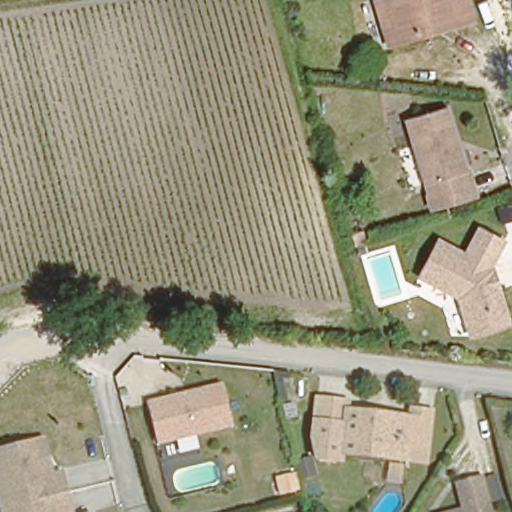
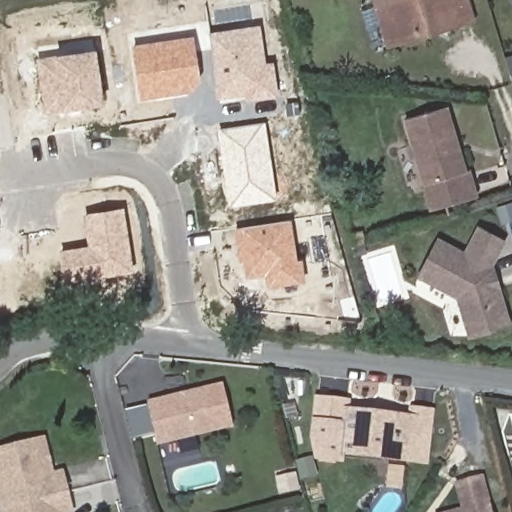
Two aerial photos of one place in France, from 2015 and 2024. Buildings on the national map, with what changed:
unchanged [(389,40),(378,0),(467,0),(472,15),(437,25),(423,30),(402,36),(389,40)]
new [(261,25),(266,62),(275,61),(280,96),(246,101),(245,95),(217,99),(216,84),(218,83),(211,32),(261,25)]
new [(194,35),(202,81),(192,92),(141,100),(132,45),(194,35)]
new [(56,55),(97,49),(106,103),(65,110),(45,113),(37,59),(56,55)]
new [(507,57),(512,56),(512,72),(509,62),(507,57)]
unchanged [(408,127),(448,116),(467,180),(427,191),(420,169),(408,127)]
new [(266,121),(277,199),(231,206),(218,128),(266,121)]
new [(89,245),(84,214),(125,207),(134,271),(66,283),(60,250),(89,245)]
new [(292,219),(297,259),(303,259),(306,281),(268,287),(267,275),(246,277),(244,260),(239,261),(235,228),(292,219)]
unchanged [(468,332),(457,296),(417,277),(436,241),(462,254),(476,228),(501,240),(487,265),(490,266),(496,285),(507,320),(468,332)]
unchanged [(221,380),(232,426),(154,443),(142,398),(221,380)]
unchanged [(414,414),(410,463),(341,459),(339,465),(318,463),(311,454),(312,420),(316,395),(353,398),(351,408),(407,414),(414,414)]
unchanged [(414,414),(407,414),(408,406),(436,410),(430,465),(410,463),(414,414)]
unchanged [(68,512),(0,512),(0,454),(37,443),(47,478),(57,475),(68,512)]
unchanged [(462,510),(457,486),(479,481),(485,506),(488,506),(490,512),(457,512),(462,510)]

